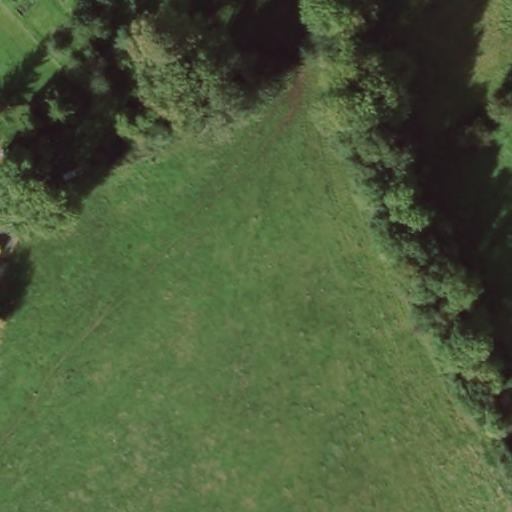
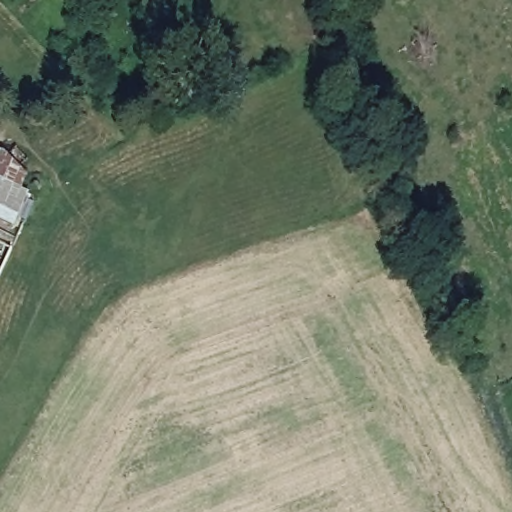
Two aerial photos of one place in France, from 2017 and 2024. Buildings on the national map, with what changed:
unchanged [(164,54),(199,92),(189,101),(155,62),(164,54)]
new [(27,221),(19,218),(16,226),(0,219),(0,161),(3,153),(15,159),(24,189),(31,192),(28,198),(36,201),(27,221)]
unchanged [(3,257),(0,256),(0,239),(1,235),(11,239),(3,257)]

